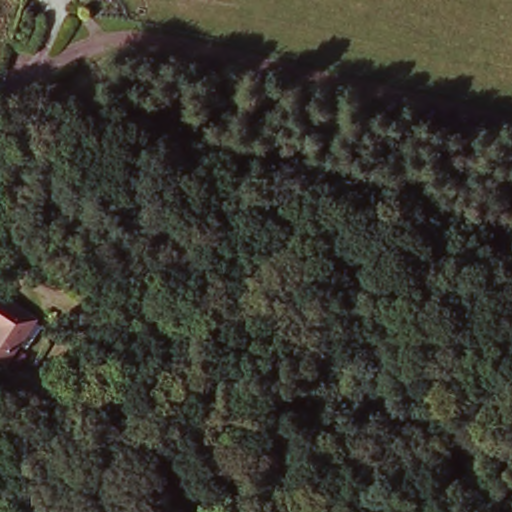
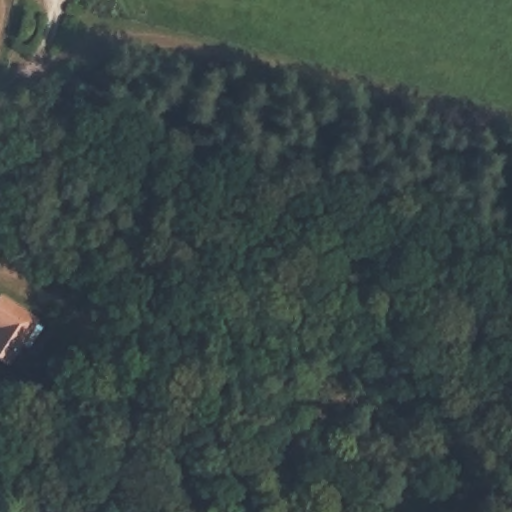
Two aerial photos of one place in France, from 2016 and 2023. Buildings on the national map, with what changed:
unchanged [(7,336),(0,329),(0,322),(14,307),(42,333),(8,372),(0,365),(0,344),(7,336)]

